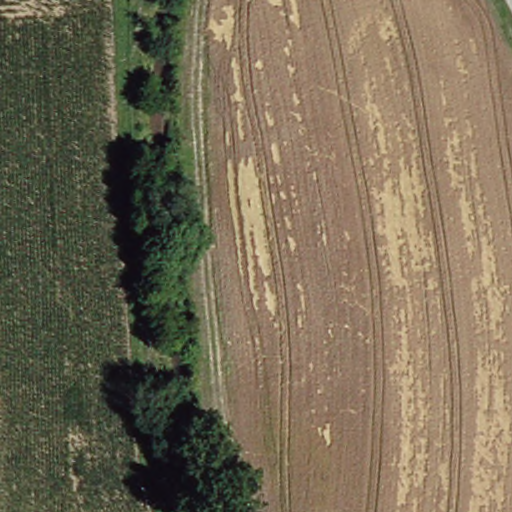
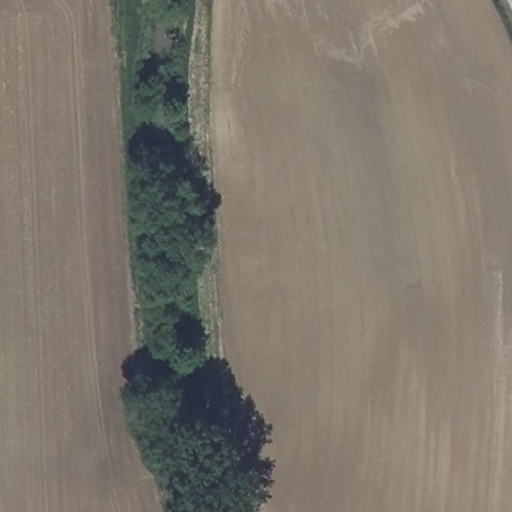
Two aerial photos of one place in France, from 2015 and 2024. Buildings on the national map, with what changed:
[]

